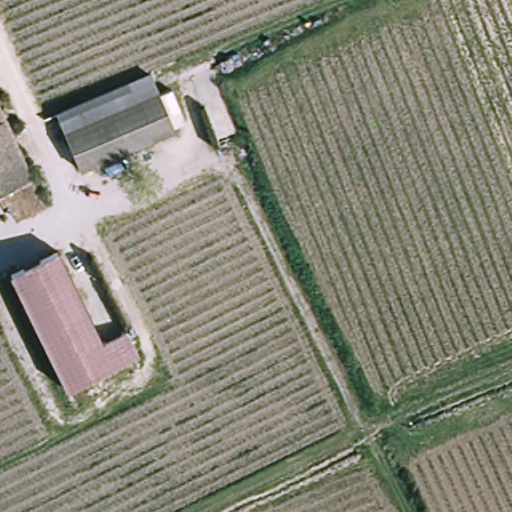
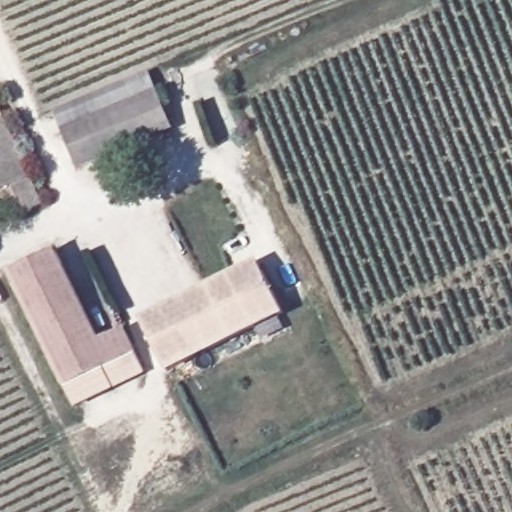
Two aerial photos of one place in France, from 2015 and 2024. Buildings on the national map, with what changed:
unchanged [(152,83),(167,116),(77,157),(62,124),(152,83)]
demolished [(0,117),(0,112),(3,116),(0,117)]
unchanged [(0,131),(0,115),(8,128),(0,131)]
unchanged [(0,201),(0,131),(8,128),(33,186),(14,195),(0,201)]
unchanged [(11,270),(58,246),(99,335),(125,327),(136,353),(64,385),(11,270)]
new [(170,373),(141,320),(257,261),(285,313),(170,373)]
new [(145,375),(76,410),(64,385),(136,353),(145,375)]

